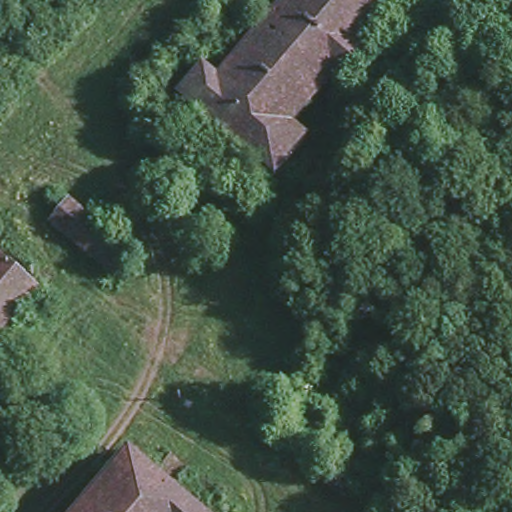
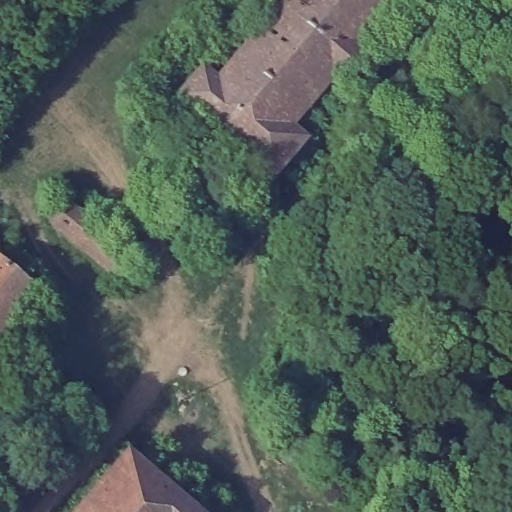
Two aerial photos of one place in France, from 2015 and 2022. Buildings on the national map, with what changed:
unchanged [(45,34),(35,26),(58,0),(75,0),(45,34)]
unchanged [(357,39),(367,47),(337,81),(327,73),(285,122),(302,137),(270,174),(175,92),(198,65),(213,78),(280,0),(391,0),(357,39)]
unchanged [(413,6),(406,0),(418,0),(413,6)]
unchanged [(134,251),(117,271),(52,218),(70,197),(134,251)]
unchanged [(32,288),(0,325),(0,261),(32,288)]
unchanged [(360,461),(349,474),(300,433),(311,421),(360,461)]
unchanged [(72,512),(125,451),(196,512),(72,512)]

